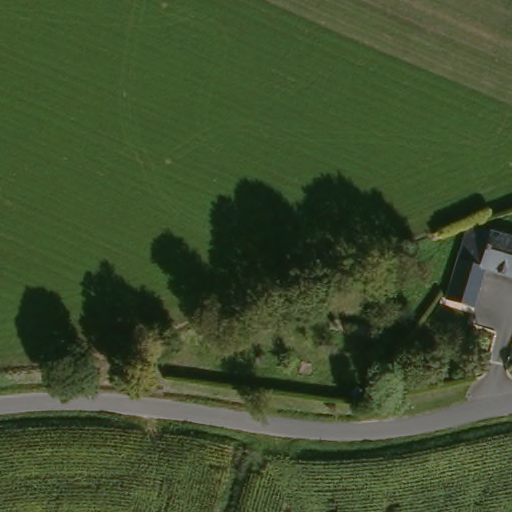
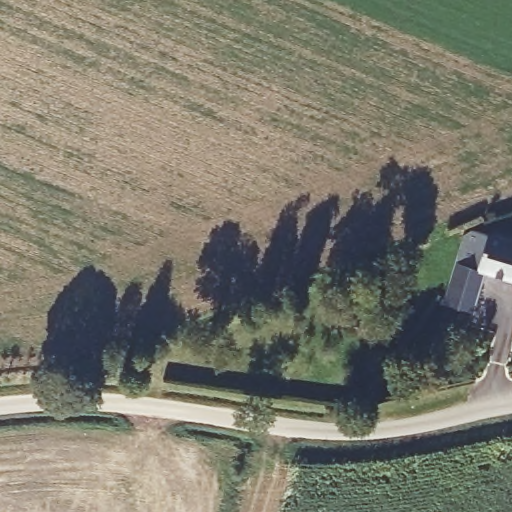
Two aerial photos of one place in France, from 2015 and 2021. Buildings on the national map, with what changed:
unchanged [(471,229),(512,241),(512,276),(485,269),(474,309),(444,301),(463,234),(471,229)]

